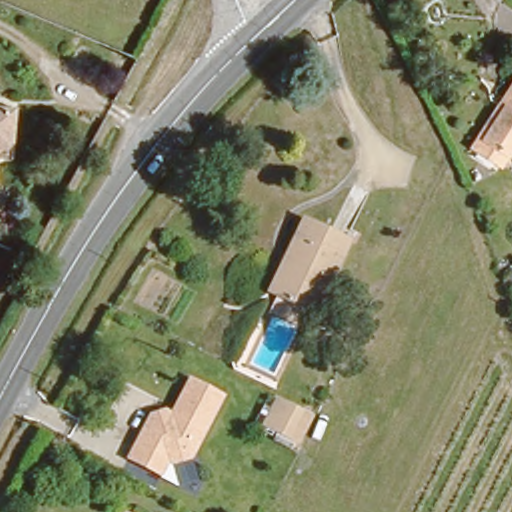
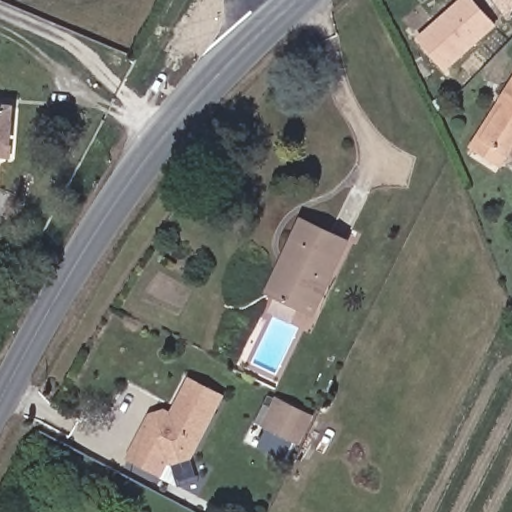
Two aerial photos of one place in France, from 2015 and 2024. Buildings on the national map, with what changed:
new [(416,38),(459,0),(474,0),(497,26),(446,71),(416,38)]
unchanged [(503,151),(494,163),(468,146),(512,67),(512,157),(503,151)]
unchanged [(342,233),(305,304),(265,284),(299,213),(342,233)]
unchanged [(214,405),(190,444),(178,447),(158,484),(124,465),(156,405),(174,400),(180,388),(214,405)]
unchanged [(263,430),(275,403),(304,416),(289,444),(263,430)]

